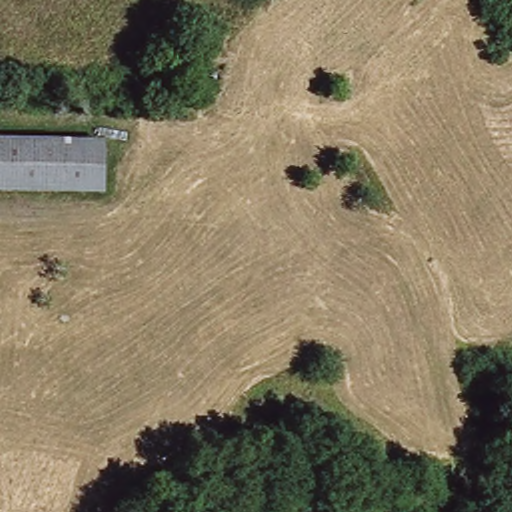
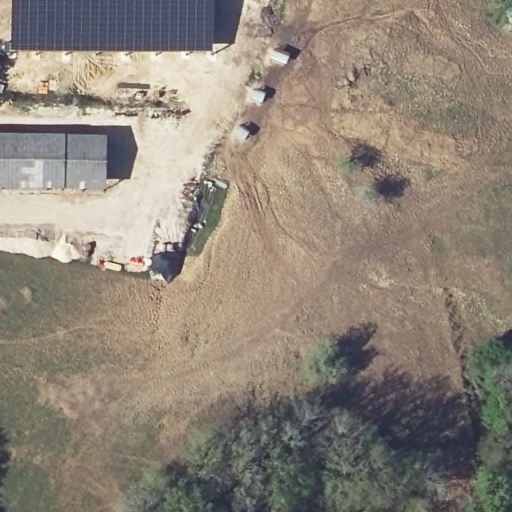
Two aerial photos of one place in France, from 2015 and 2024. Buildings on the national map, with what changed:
new [(212,0),(211,54),(9,53),(10,0),(212,0)]
unchanged [(111,144),(108,194),(0,187),(0,137),(111,144)]

